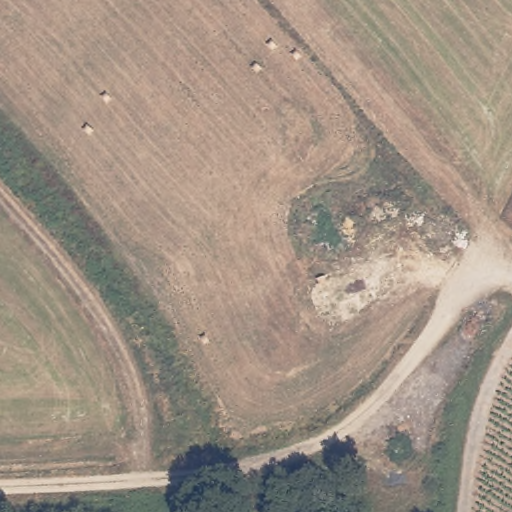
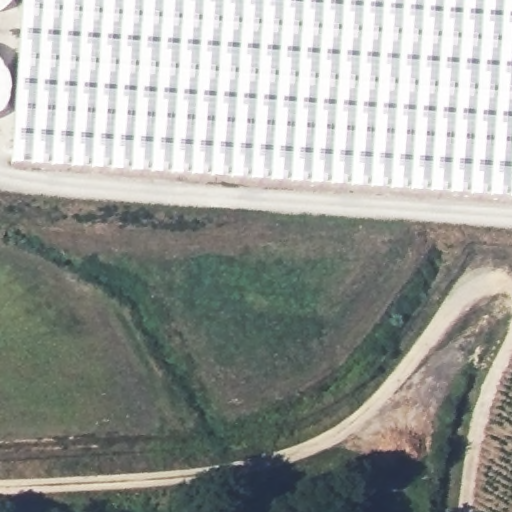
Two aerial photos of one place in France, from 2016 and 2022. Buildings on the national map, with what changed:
new [(22,0),(512,0),(512,192),(11,157),(22,0)]

